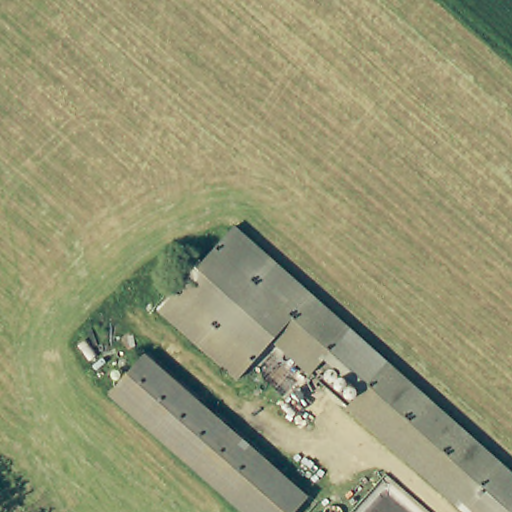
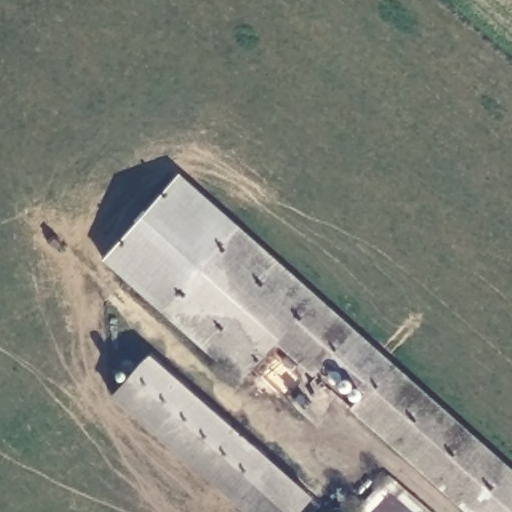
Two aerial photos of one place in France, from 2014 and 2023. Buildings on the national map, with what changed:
new [(103,256),(178,171),(240,223),(164,309),(103,256)]
unchanged [(354,325),(328,355),(314,371),(276,338),(241,378),(164,309),(240,223),(354,325)]
unchanged [(328,355),(354,325),(393,360),(367,390),(328,355)]
unchanged [(197,462),(117,390),(150,352),(231,424),(197,462)]
unchanged [(512,467),(512,512),(472,512),(352,406),(367,390),(393,360),(512,467)]
unchanged [(310,494),(295,512),(253,512),(197,462),(231,424),(310,494)]

